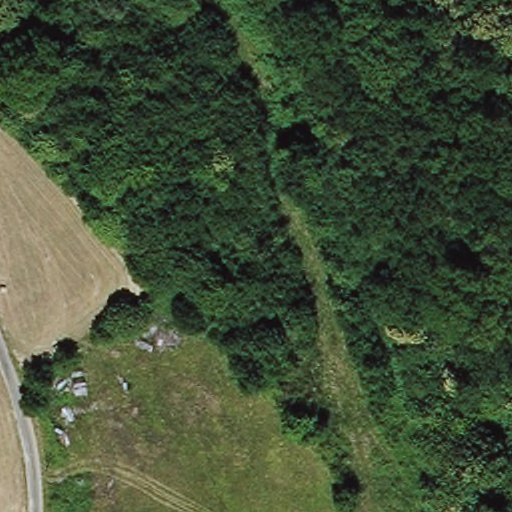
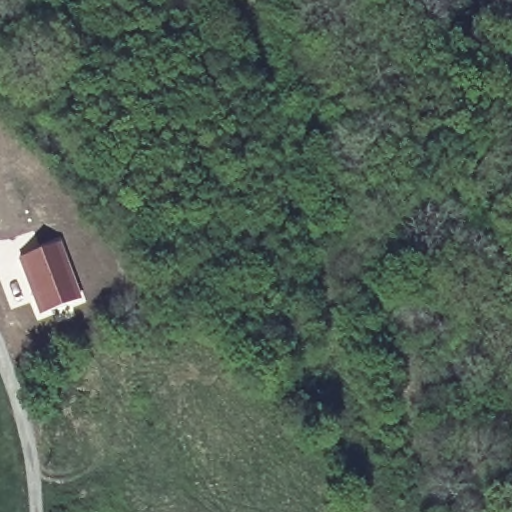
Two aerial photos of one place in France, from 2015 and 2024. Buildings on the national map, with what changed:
new [(60,240),(83,300),(37,316),(17,257),(60,240)]

